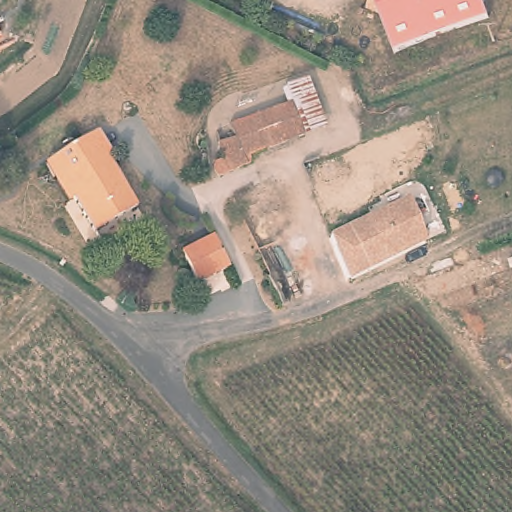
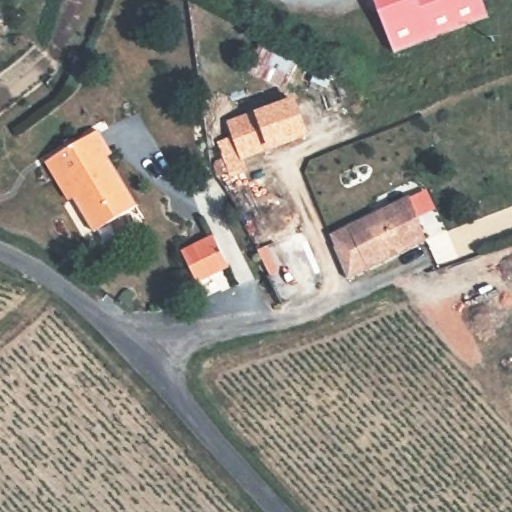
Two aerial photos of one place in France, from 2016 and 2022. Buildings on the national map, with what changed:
unchanged [(395,51),(379,10),(367,4),(368,0),(484,0),(490,15),(395,51)]
unchanged [(229,119),(293,95),(313,88),(316,87),(327,120),(321,122),(305,127),(248,149),(250,156),(216,169),(215,160),(215,159),(217,156),(221,153),(225,153),(219,137),(234,131),(229,119)]
unchanged [(98,127),(112,151),(108,155),(136,203),(94,229),(74,195),(77,192),(56,153),(98,127)]
unchanged [(366,230),(412,208),(425,238),(381,258),(366,230)]
unchanged [(337,246),(366,230),(381,258),(349,276),(337,246)]
unchanged [(197,281),(181,250),(211,233),(229,263),(197,281)]

